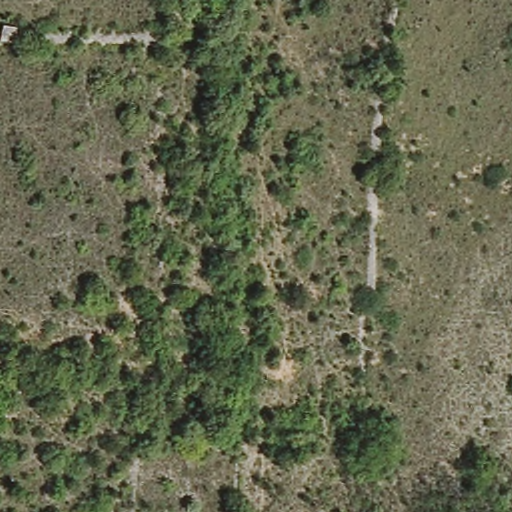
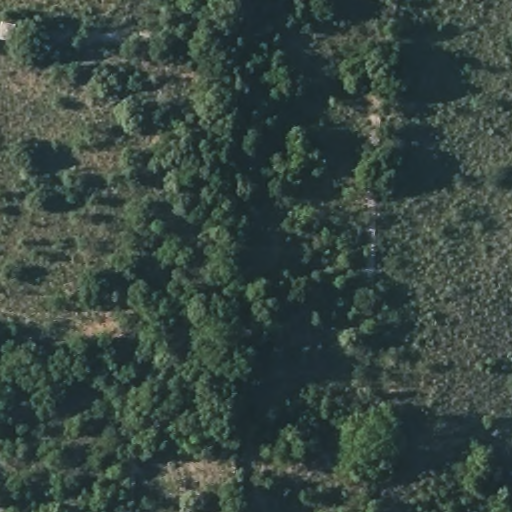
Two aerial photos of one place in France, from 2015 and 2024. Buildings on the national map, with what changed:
unchanged [(0,20),(20,20),(19,44),(0,44),(0,20)]

